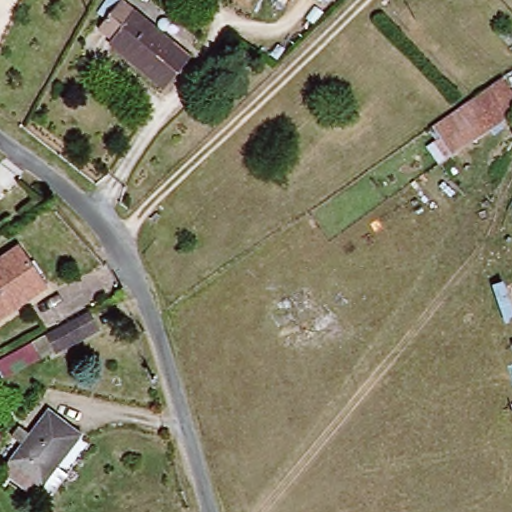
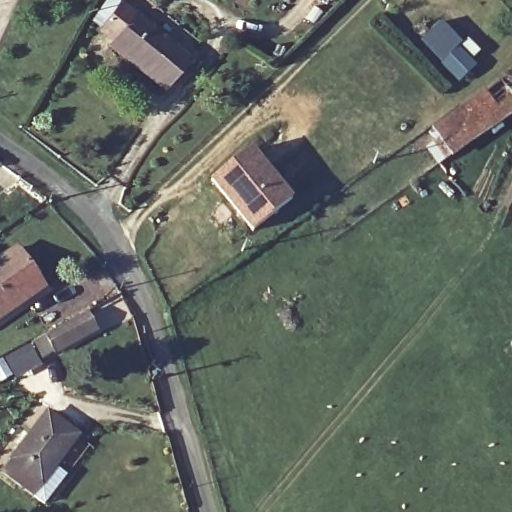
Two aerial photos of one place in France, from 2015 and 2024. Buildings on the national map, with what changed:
unchanged [(110,42),(97,33),(119,0),(123,0),(190,56),(162,90),(106,47),(110,42)]
unchanged [(325,0),(338,0),(336,4),(325,0)]
new [(421,41),(441,21),(448,28),(445,32),(448,35),(451,32),(475,55),(471,59),(477,65),(460,82),(421,41)]
unchanged [(440,165),(426,149),(437,139),(431,127),(500,81),(512,96),(512,116),(440,165)]
new [(250,146),(292,198),(252,231),(210,179),(250,146)]
unchanged [(49,284),(0,317),(0,260),(22,245),(49,284)]
unchanged [(32,343),(88,313),(97,331),(41,360),(32,343)]
unchanged [(45,483),(35,496),(5,474),(50,413),(81,436),(59,468),(70,476),(58,492),(45,483)]

